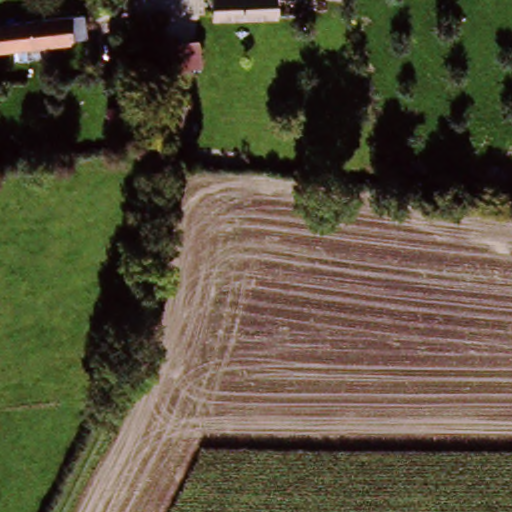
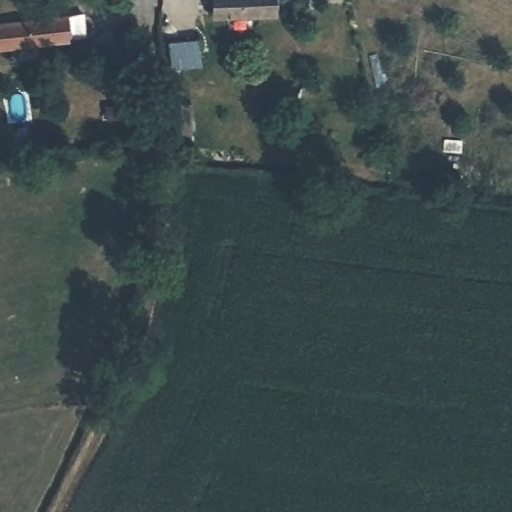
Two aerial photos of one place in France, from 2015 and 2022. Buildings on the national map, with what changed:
unchanged [(210,21),(210,0),(272,0),(272,22),(210,21)]
unchanged [(80,18),(82,38),(0,49),(0,29),(80,18)]

